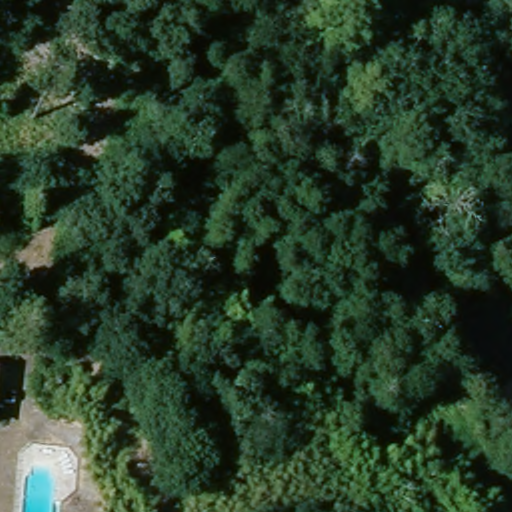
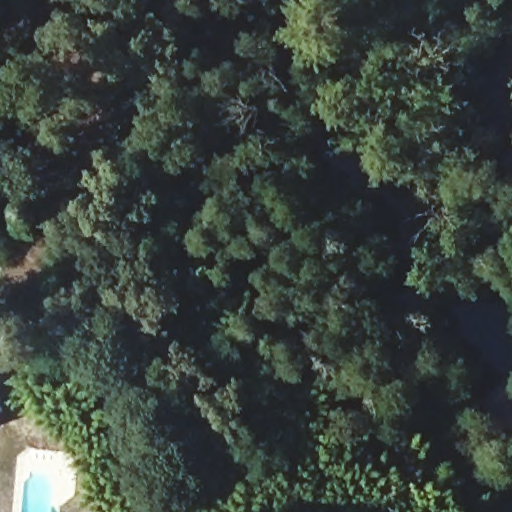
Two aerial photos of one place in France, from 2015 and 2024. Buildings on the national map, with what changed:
[]

